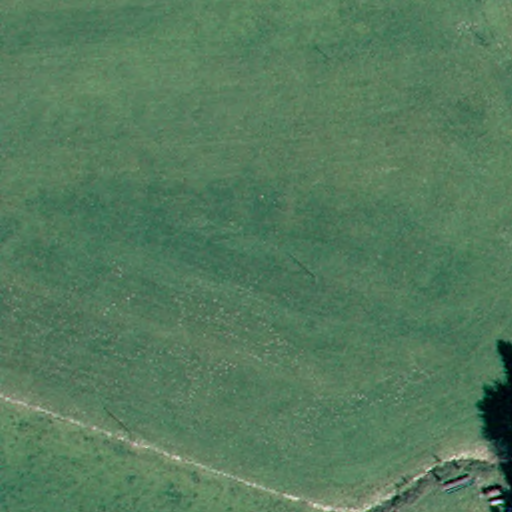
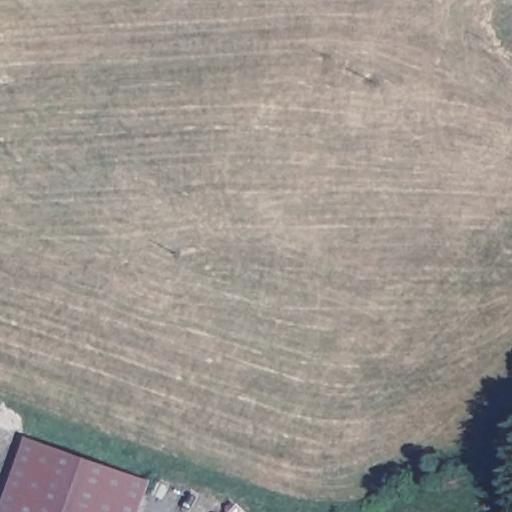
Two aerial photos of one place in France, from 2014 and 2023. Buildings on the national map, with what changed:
new [(143,512),(2,512),(28,436),(155,480),(143,512)]

